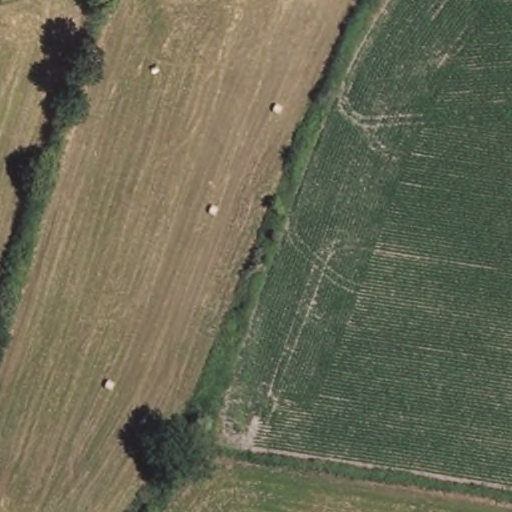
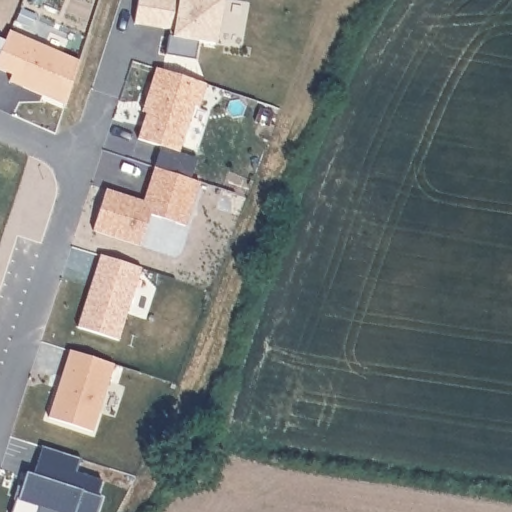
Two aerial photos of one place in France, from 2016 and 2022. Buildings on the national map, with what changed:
new [(196,42),(193,61),(165,56),(169,31),(134,25),(138,0),(222,0),(216,46),(196,42)]
new [(8,82),(11,75),(0,70),(0,51),(9,32),(78,60),(63,104),(8,82)]
new [(205,85),(199,106),(193,105),(178,152),(137,139),(145,114),(141,112),(155,69),(205,85)]
new [(186,227),(150,215),(140,247),(92,231),(106,191),(143,204),(154,170),(200,182),(186,227)]
new [(141,269),(118,341),(76,327),(100,255),(141,269)]
new [(114,365),(92,432),(48,417),(68,350),(114,365)]
new [(79,458),(75,472),(101,481),(95,497),(100,498),(95,512),(55,512),(37,506),(35,512),(12,512),(26,472),(33,475),(42,447),(79,458)]

